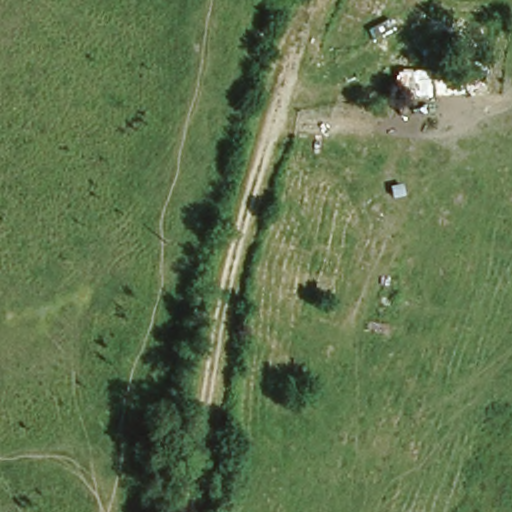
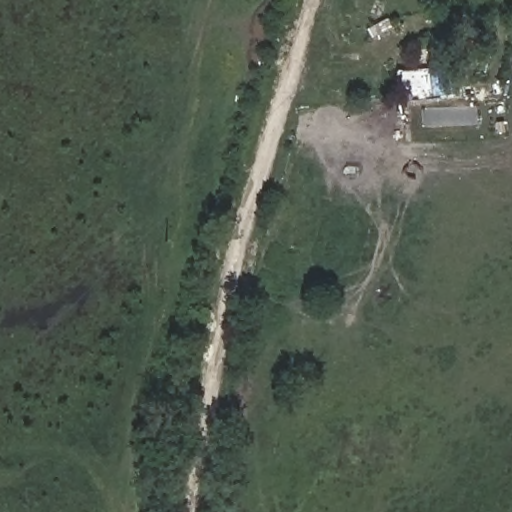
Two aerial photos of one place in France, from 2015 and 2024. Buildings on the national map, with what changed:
unchanged [(458,57),(463,86),(397,92),(399,65),(458,57)]

